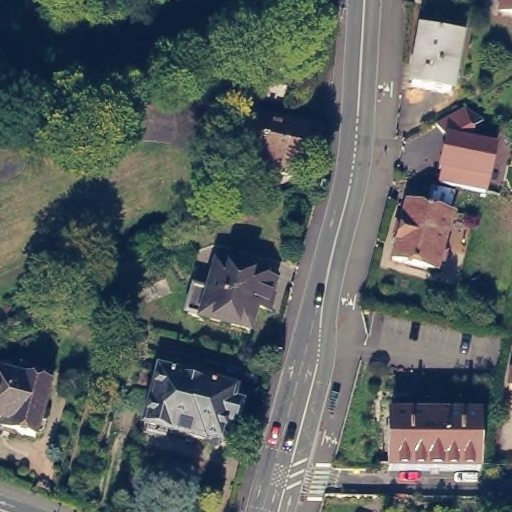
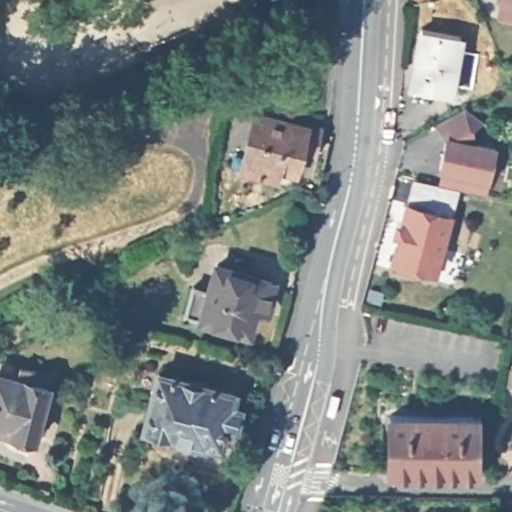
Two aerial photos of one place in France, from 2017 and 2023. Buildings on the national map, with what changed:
unchanged [(500,14),(502,0),(512,0),(512,16),(500,14)]
unchanged [(461,31),(451,89),(411,82),(422,24),(461,31)]
unchanged [(315,141),(301,137),(296,158),(281,155),(278,165),(245,157),(257,104),(305,116),(306,113),(322,117),(315,141)]
unchanged [(135,112),(158,105),(164,123),(141,130),(135,112)]
unchanged [(465,108),(484,121),(474,127),(480,140),(497,143),(486,194),(437,184),(442,169),(437,168),(444,135),(436,124),(465,108)]
unchanged [(455,215),(441,271),(397,260),(413,205),(455,215)]
unchanged [(279,281),(272,310),(261,307),(256,333),(190,315),(199,286),(216,291),(223,266),(279,281)]
unchanged [(222,429),(210,436),(207,431),(201,430),(200,432),(162,422),(160,429),(142,424),(144,417),(139,416),(155,361),(231,382),(227,394),(236,397),(231,415),(222,412),(219,424),(222,429)]
unchanged [(25,378),(28,364),(62,375),(45,438),(11,429),(12,420),(0,417),(0,378),(2,372),(25,378)]
unchanged [(389,407),(481,407),(480,461),(388,460),(389,407)]

